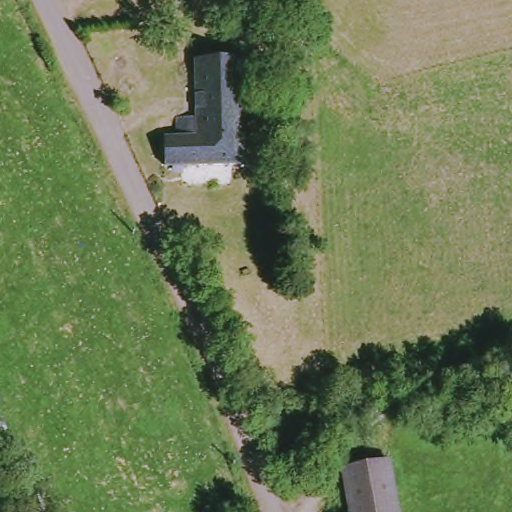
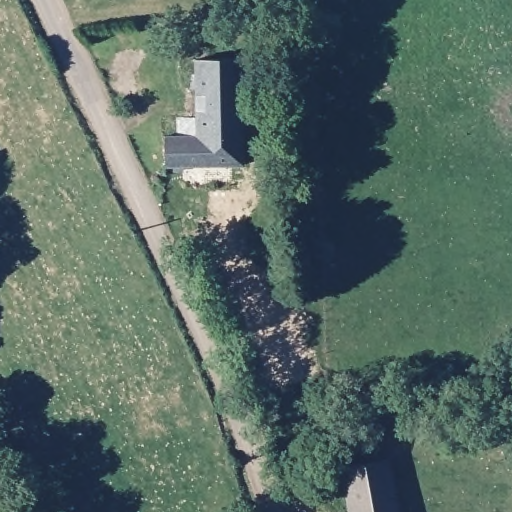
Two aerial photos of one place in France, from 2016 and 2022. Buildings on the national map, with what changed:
unchanged [(263,59),(263,78),(252,78),(246,168),(169,165),(168,137),(186,137),(188,118),(203,118),(205,58),(263,59)]
unchanged [(399,465),(408,512),(356,512),(349,474),(399,465)]

